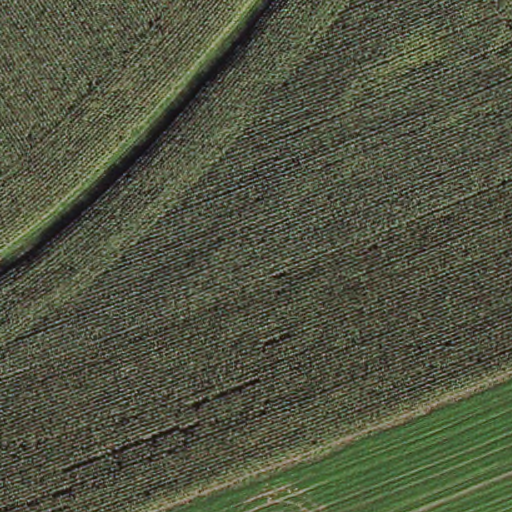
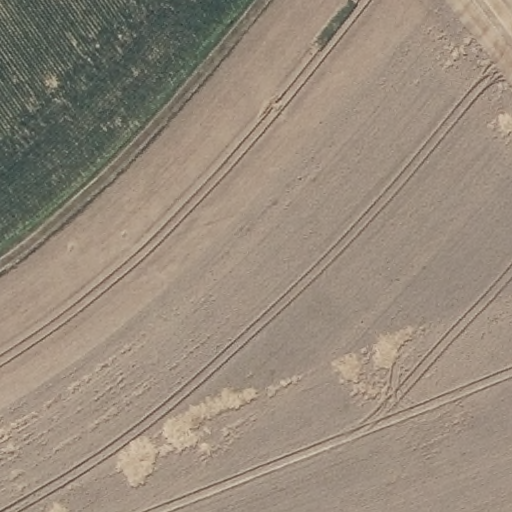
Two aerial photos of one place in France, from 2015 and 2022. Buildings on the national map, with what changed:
[]

